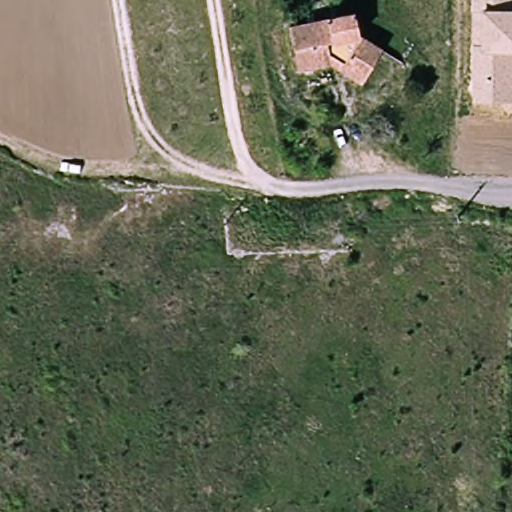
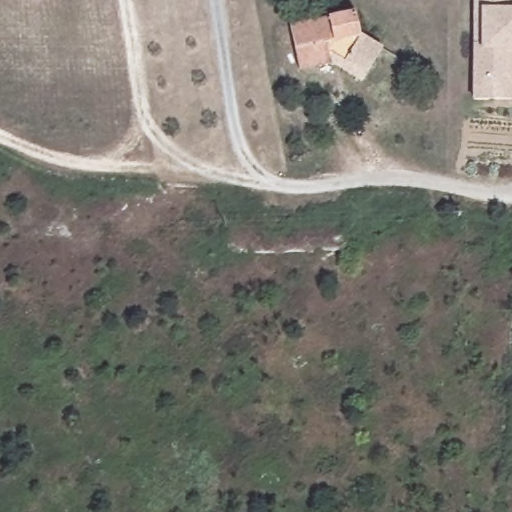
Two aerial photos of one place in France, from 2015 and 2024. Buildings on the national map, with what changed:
unchanged [(472,0),(512,0),(512,102),(472,102),(472,0)]
unchanged [(360,16),(363,37),(386,50),(367,81),(346,70),(350,63),(301,71),(295,28),(360,16)]

